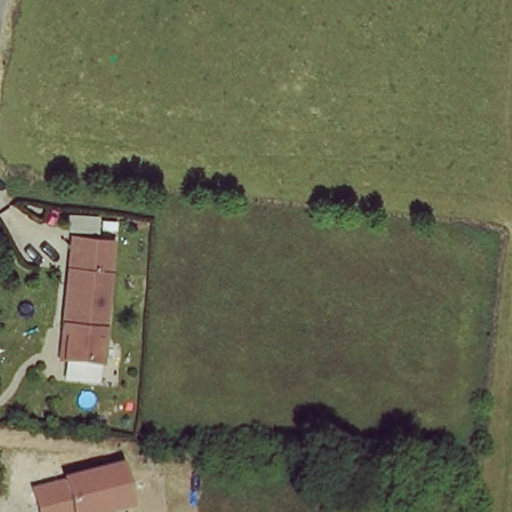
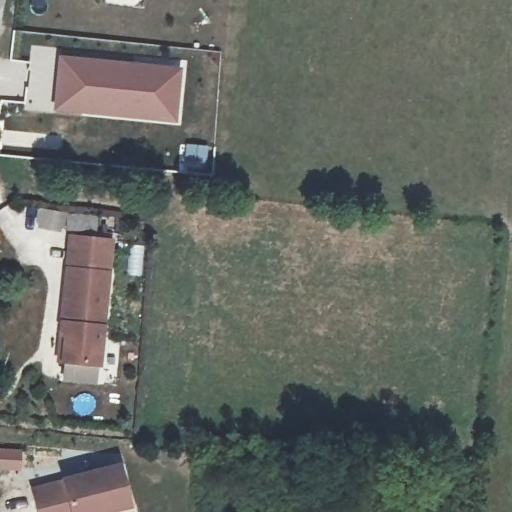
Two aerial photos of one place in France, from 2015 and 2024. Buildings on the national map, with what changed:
new [(52,109),(58,55),(179,69),(174,121),(52,109)]
unchanged [(60,333),(67,269),(70,237),(80,238),(110,241),(97,364),(62,361),(57,360),(60,333)]
unchanged [(122,464),(133,509),(120,512),(35,512),(29,485),(122,464)]

